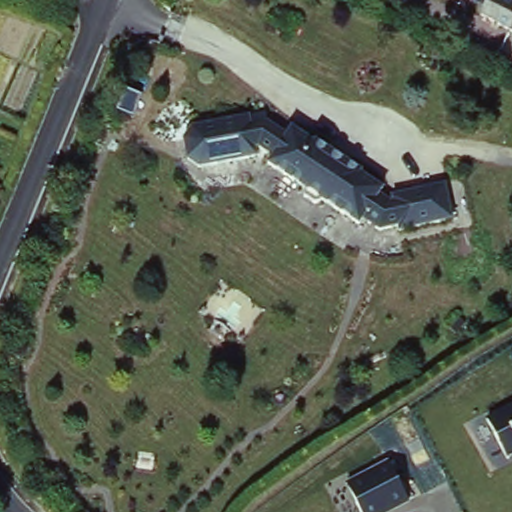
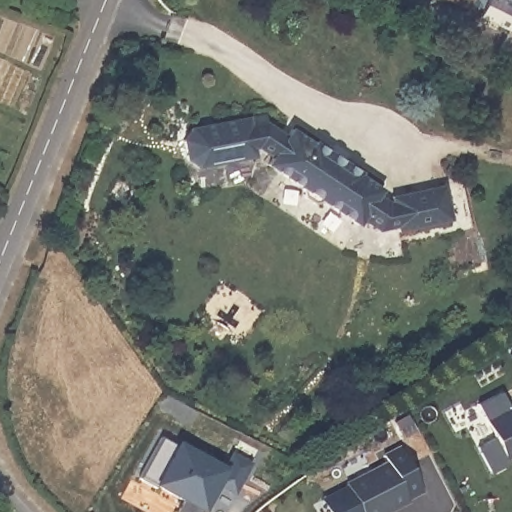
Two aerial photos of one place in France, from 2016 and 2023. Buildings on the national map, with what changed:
unchanged [(463,7),(448,0),(466,0),(463,7)]
unchanged [(486,11),(490,0),(512,0),(512,23),(486,11)]
unchanged [(461,214),(408,224),(407,220),(384,226),(337,197),(326,200),(312,193),(309,178),(274,158),(279,153),(267,143),(262,144),(264,153),(197,164),(193,123),(256,113),(258,120),(275,117),(293,130),(299,124),(389,183),(385,189),(399,196),(398,190),(452,181),(461,214)]
unchanged [(508,459),(486,419),(512,405),(512,457),(508,459)]
new [(229,471),(235,460),(247,467),(236,488),(223,481),(206,512),(200,512),(141,474),(151,457),(156,459),(158,455),(153,453),(161,439),(176,446),(178,443),(229,471)]
unchanged [(404,446),(423,491),(388,512),(360,512),(345,484),(388,461),(384,453),(404,446)]

